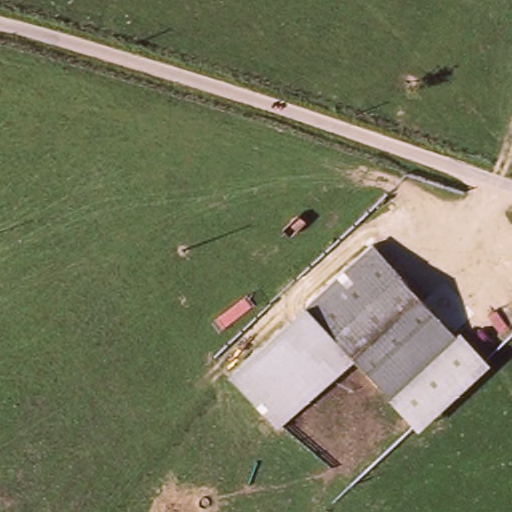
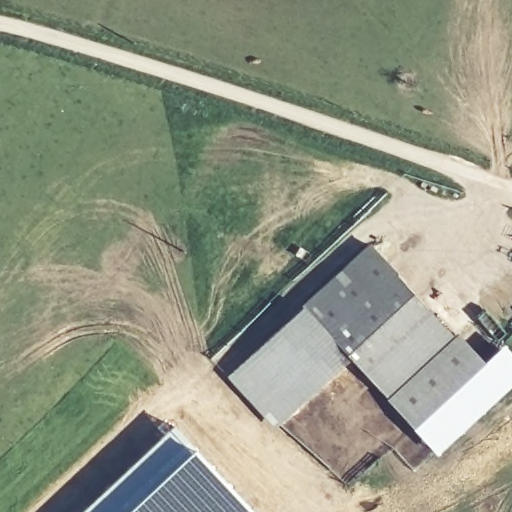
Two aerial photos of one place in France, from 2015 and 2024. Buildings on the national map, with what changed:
unchanged [(232,381),(282,333),(372,246),(436,312),(459,336),(393,399),(352,358),(335,340),(259,409),(232,381)]
unchanged [(463,334),(486,364),(416,429),(390,401),(393,399),(459,336),(463,334)]
unchanged [(278,429),(259,409),(335,340),(352,358),(278,429)]
new [(192,447),(122,512),(79,512),(171,426),(192,447)]
new [(255,512),(122,512),(192,447),(255,512)]

